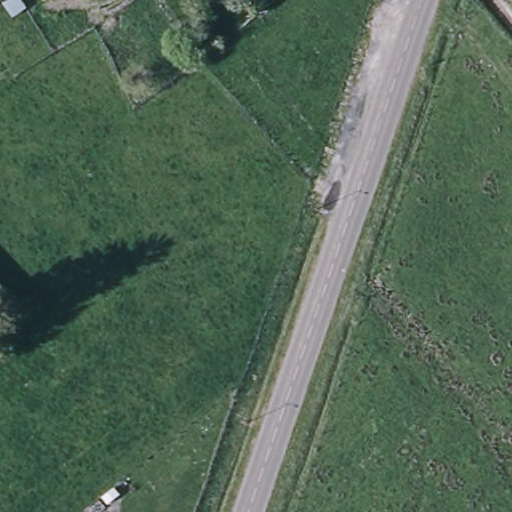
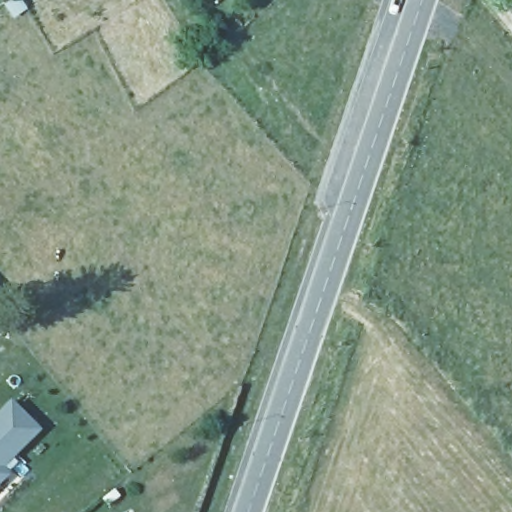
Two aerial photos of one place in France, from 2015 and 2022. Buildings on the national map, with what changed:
new [(40,430),(1,467),(8,474),(0,483),(0,410),(10,400),(40,430)]

